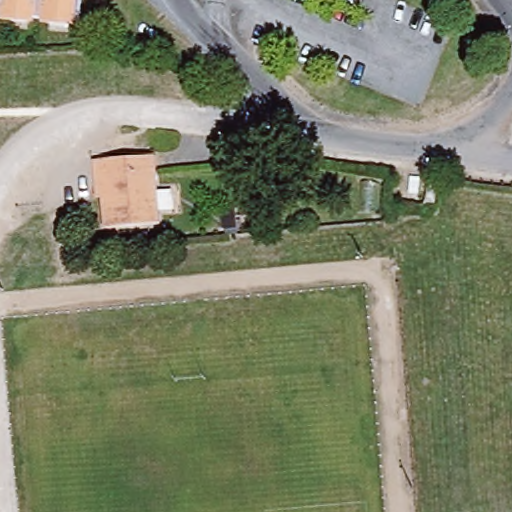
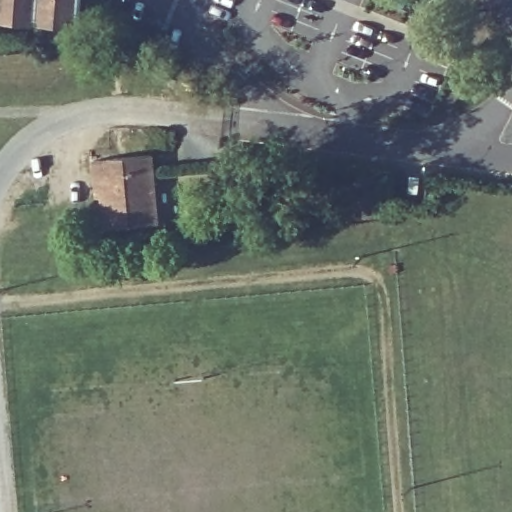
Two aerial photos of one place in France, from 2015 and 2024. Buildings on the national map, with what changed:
unchanged [(2,16),(1,31),(0,31),(0,0),(84,0),(83,22),(2,16)]
unchanged [(159,224),(107,227),(106,192),(97,193),(95,158),(113,156),(154,155),(159,224)]
unchanged [(416,174),(427,175),(425,192),(414,191),(416,174)]
unchanged [(438,197),(427,196),(430,175),(442,177),(438,197)]

